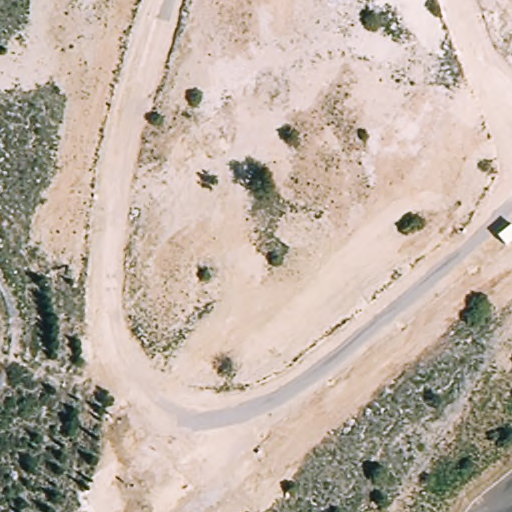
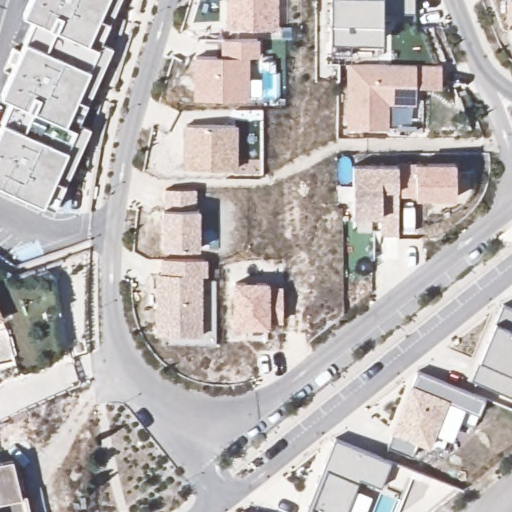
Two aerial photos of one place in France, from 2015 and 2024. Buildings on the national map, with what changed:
new [(0,95),(14,64),(8,61),(13,49),(20,50),(25,40),(34,20),(23,14),(29,0),(119,0),(108,23),(101,41),(112,47),(87,103),(79,123),(89,129),(64,183),(52,209),(42,204),(0,185),(0,126),(2,121),(11,100),(0,95)]
new [(224,30),(224,0),(274,0),(274,30),(224,30)]
new [(380,14),(380,43),(328,43),(328,4),(328,0),(412,0),(412,14),(380,14)]
new [(510,21),(503,21),(503,0),(512,0),(512,39),(510,39),(510,21)]
new [(248,98),(248,100),(191,98),(192,58),(220,57),(220,39),(258,39),(257,57),(248,56),(248,60),(261,61),(261,99),(248,98)]
new [(441,64),(440,88),(416,88),(416,105),(388,104),(387,130),(345,130),(346,64),(415,64),(441,64)]
new [(232,126),(233,170),(183,170),(182,126),(232,126)]
new [(454,196),(416,197),(396,194),(397,163),(416,162),(454,162),(454,196)]
new [(394,165),(395,234),(377,234),(377,215),(349,215),(349,166),(394,165)]
new [(194,190),(194,210),(197,210),(197,250),(162,250),(162,210),(164,210),(164,190),(194,190)]
new [(206,259),(205,275),(202,275),(200,335),(152,334),(155,274),(160,273),(159,259),(206,259)]
new [(265,284),(265,289),(280,289),(280,321),(265,320),(265,325),(232,325),(232,284),(265,284)]
new [(512,309),(512,397),(471,381),(468,379),(489,322),(492,323),(500,304),(512,309)]
new [(3,319),(0,320),(0,311),(3,319)]
new [(483,398),(477,414),(444,401),(427,446),(416,442),(410,457),(385,447),(415,371),(483,398)]
new [(333,439),(389,462),(379,487),(358,479),(345,512),(304,512),(306,507),(313,488),(333,439)]
new [(0,502),(0,462),(12,459),(22,497),(0,502)]
new [(22,497),(27,496),(31,512),(0,512),(0,502),(22,497)]

